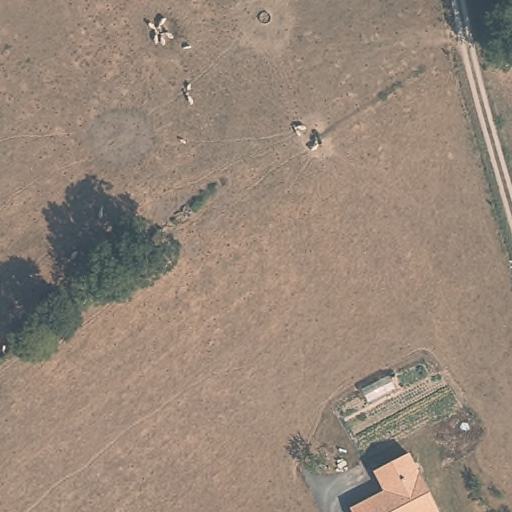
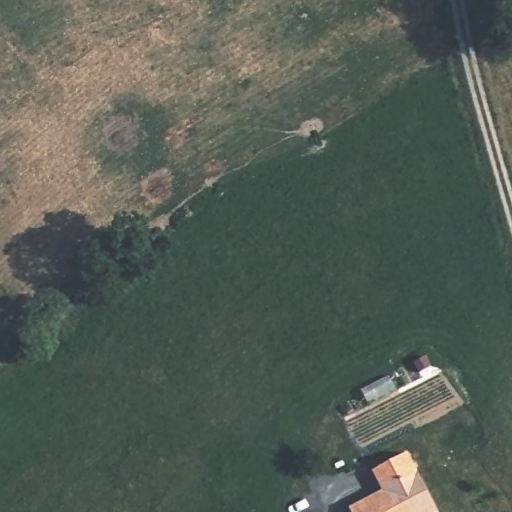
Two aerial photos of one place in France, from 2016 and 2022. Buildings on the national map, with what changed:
unchanged [(384,500),(374,481),(408,462),(436,512),(362,512),(384,500)]

